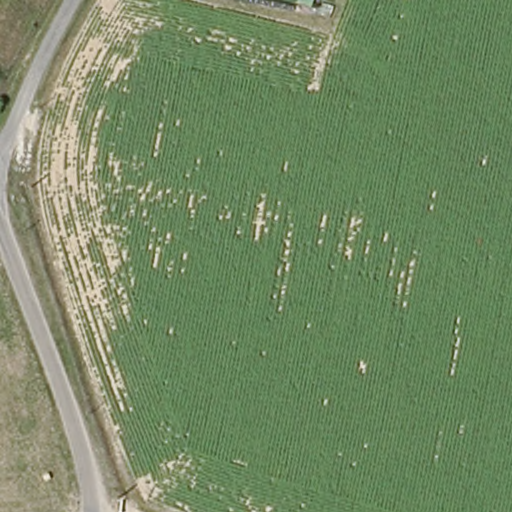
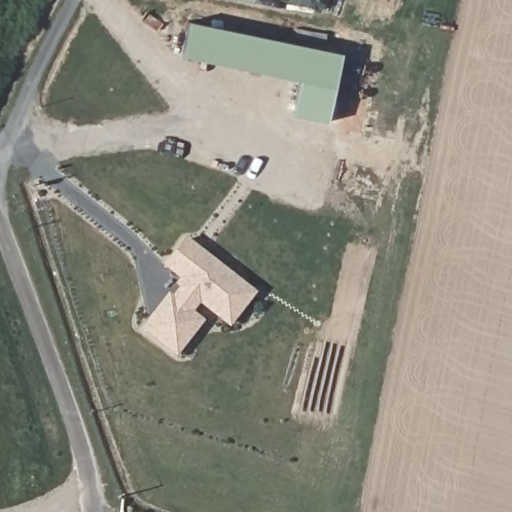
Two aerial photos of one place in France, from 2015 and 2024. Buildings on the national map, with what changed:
new [(328,121),(291,115),(298,81),(179,56),(188,20),(342,53),(328,121)]
new [(229,326),(199,303),(193,311),(204,320),(175,356),(139,329),(167,293),(171,296),(178,287),(174,284),(178,279),(161,265),(185,237),(255,293),(229,326)]

